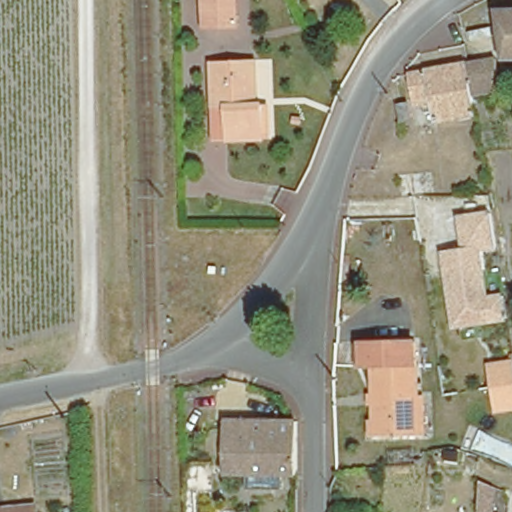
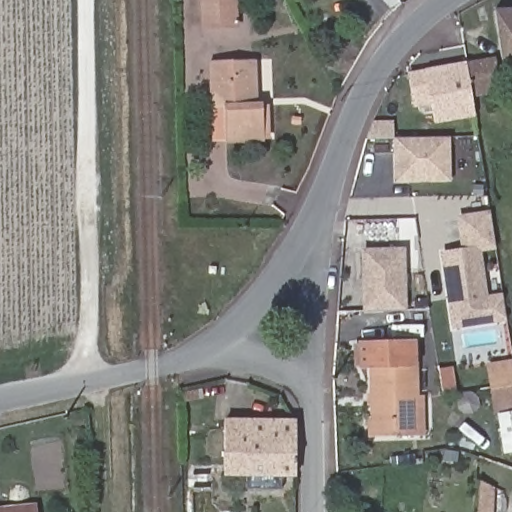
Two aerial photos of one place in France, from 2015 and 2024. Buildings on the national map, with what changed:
unchanged [(204,0),(239,0),(239,22),(205,22),(204,0)]
unchanged [(497,6),(512,5),(512,52),(505,53),(497,6)]
unchanged [(435,96),(414,99),(409,67),(469,58),(499,53),(504,84),(473,88),(476,108),(438,115),(435,96)]
unchanged [(215,110),(212,61),(257,60),(258,103),(266,103),(267,142),(227,143),(216,143),(215,110)]
new [(394,138),(450,138),(451,181),(395,182),(394,138)]
demolished [(437,197),(402,201),(398,175),(433,170),(437,197)]
unchanged [(509,321),(452,330),(439,250),(462,247),(458,214),(492,210),(498,250),(484,252),(490,295),(505,293),(509,321)]
new [(406,248),(407,309),(363,312),(362,250),(406,248)]
unchanged [(369,416),(375,416),(374,401),(368,401),(368,390),(374,390),(373,360),(362,361),(363,338),(417,336),(418,390),(425,390),(426,430),(419,430),(375,431),(369,431),(369,416)]
unchanged [(488,363),(512,360),(512,411),(496,415),(488,363)]
unchanged [(284,470),(284,483),(248,482),(248,469),(225,469),(226,417),(297,416),(298,470),(284,470)]
unchanged [(490,510),(506,510),(505,512),(479,512),(483,477),(492,481),(490,510)]
unchanged [(36,504),(37,512),(0,512),(0,507),(36,504)]

